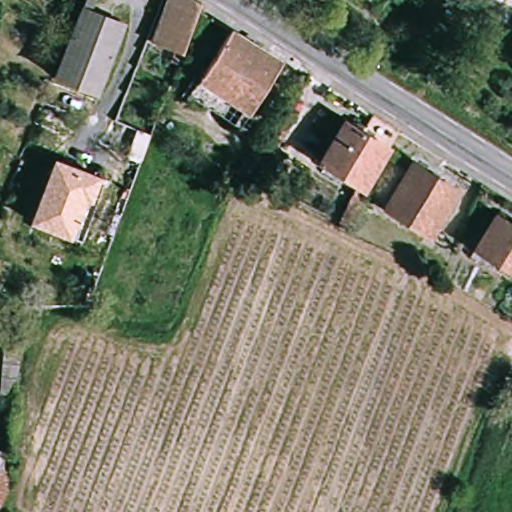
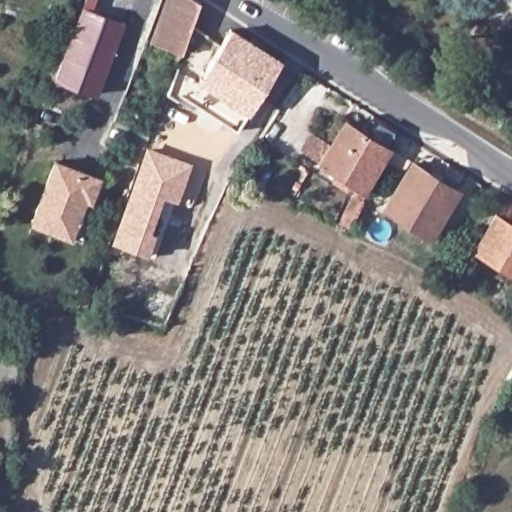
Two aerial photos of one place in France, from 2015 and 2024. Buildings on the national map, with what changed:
unchanged [(84,0),(93,0),(89,10),(121,23),(94,91),(55,75),(84,0)]
unchanged [(177,58),(149,41),(165,0),(193,0),(198,3),(177,58)]
unchanged [(284,56),(244,119),(194,87),(234,24),(284,56)]
unchanged [(362,190),(318,163),(344,120),(361,131),(371,114),(396,131),(362,190)]
new [(144,150),(185,166),(151,258),(110,242),(144,150)]
unchanged [(97,176),(89,198),(95,200),(80,239),(31,220),(55,161),(97,176)]
unchanged [(385,205),(411,162),(456,190),(430,232),(385,205)]
unchanged [(512,223),(512,274),(473,249),(496,213),(512,223)]
unchanged [(18,393),(0,392),(0,356),(1,345),(23,345),(18,393)]
unchanged [(12,457),(9,485),(0,493),(0,453),(12,457)]

